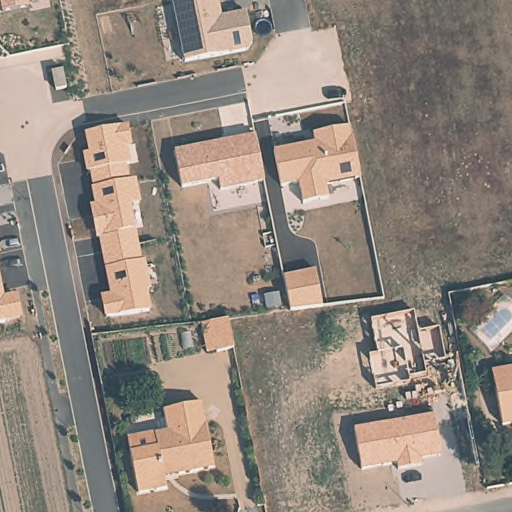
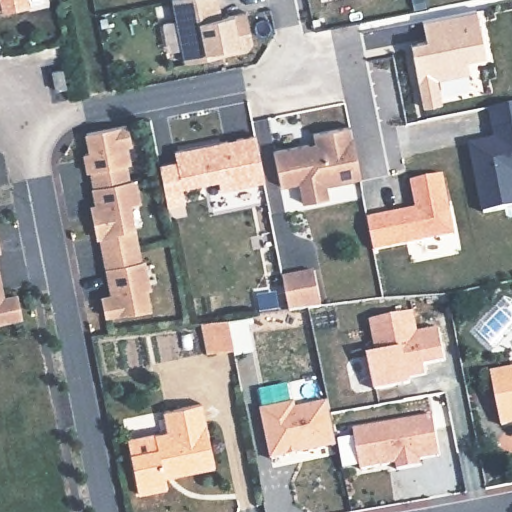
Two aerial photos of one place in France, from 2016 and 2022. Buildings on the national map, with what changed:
unchanged [(30,8),(1,13),(0,8),(0,0),(28,0),(30,8)]
unchanged [(181,60),(170,0),(218,0),(220,16),(243,12),(249,44),(244,51),(181,60)]
new [(431,40),(429,30),(427,20),(476,10),(486,57),(468,60),(470,72),(439,79),(444,103),(426,107),(413,44),(431,40)]
new [(469,145),(497,140),(491,109),(512,104),(512,208),(484,214),(469,145)]
unchanged [(133,148),(126,149),(128,167),(125,167),(128,181),(136,179),(140,205),(131,206),(152,312),(103,317),(100,296),(109,294),(98,240),(95,241),(89,205),(94,203),(87,174),(85,175),(82,154),(88,153),(84,133),(129,126),(133,148)]
unchanged [(327,185),(328,198),(302,203),(299,185),(280,189),(272,150),(312,142),(310,132),(348,126),(358,178),(327,185)]
unchanged [(218,191),(217,181),(182,186),(184,202),(167,206),(157,164),(175,160),(172,152),(255,136),(263,182),(218,191)]
new [(368,218),(416,208),(411,181),(443,175),(454,235),(374,249),(368,218)]
unchanged [(321,307),(289,311),(284,275),(312,270),(321,307)]
unchanged [(4,296),(16,292),(22,319),(0,324),(0,272),(4,296)]
unchanged [(438,327),(445,361),(425,365),(427,376),(408,380),(408,385),(373,389),(367,354),(376,352),(369,320),(413,311),(417,330),(438,327)]
unchanged [(222,321),(229,351),(210,353),(199,356),(194,324),(204,323),(222,321)]
unchanged [(495,375),(512,372),(512,418),(504,419),(495,375)]
unchanged [(202,399),(215,465),(179,472),(178,468),(163,471),(166,485),(139,491),(131,451),(158,446),(154,431),(168,428),(166,407),(202,399)]
new [(335,446),(274,457),(263,408),(295,402),(296,407),(327,400),(335,446)]
unchanged [(439,456),(420,459),(421,466),(396,471),(395,465),(359,470),(353,428),(432,415),(439,456)]

